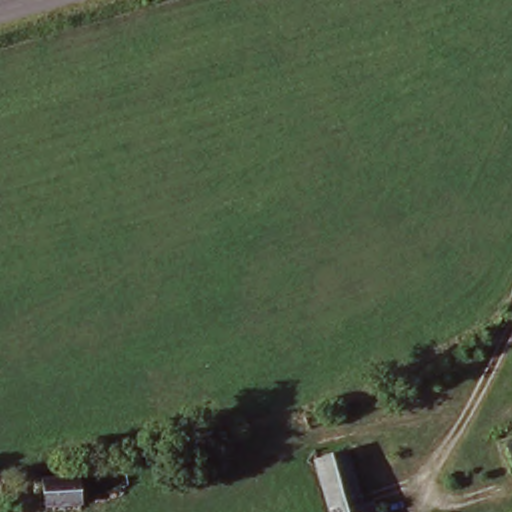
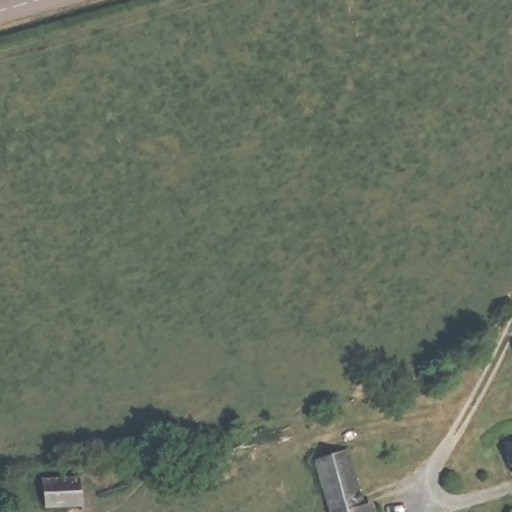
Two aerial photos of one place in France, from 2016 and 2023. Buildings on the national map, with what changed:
unchanged [(308,460),(339,452),(359,508),(372,503),(376,512),(324,512),(308,460)]
unchanged [(512,456),(512,472),(509,458),(512,456)]
unchanged [(78,483),(80,503),(38,508),(36,487),(78,483)]

